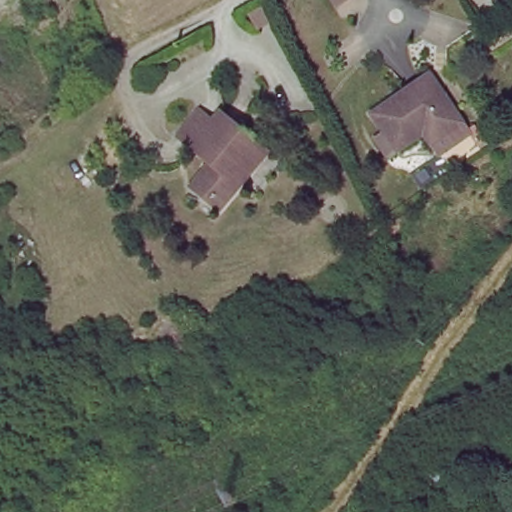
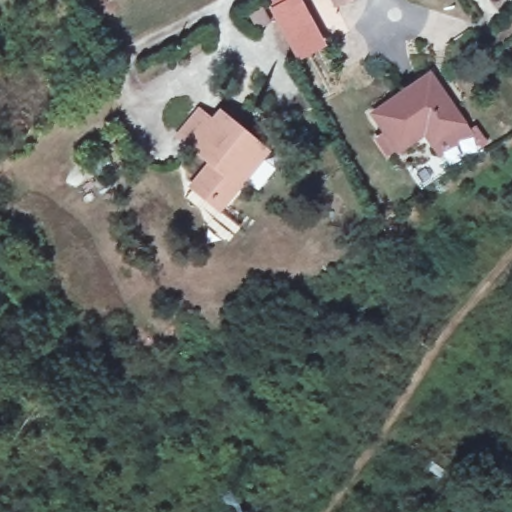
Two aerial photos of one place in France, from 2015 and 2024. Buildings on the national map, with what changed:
new [(283,0),(301,0),(325,46),(301,60),(272,6),(283,0)]
unchanged [(332,8),(328,0),(347,0),(332,8)]
unchanged [(441,152),(432,141),(422,128),(397,145),(372,110),(421,78),(430,72),(442,89),(464,121),(472,132),(441,152)]
unchanged [(212,200),(192,184),(209,161),(188,145),(175,134),(194,109),(210,120),(219,109),(260,142),(269,148),(242,183),(228,198),(220,208),(212,200)]

